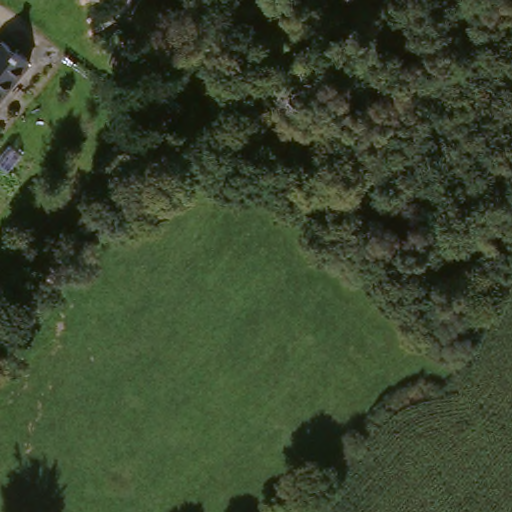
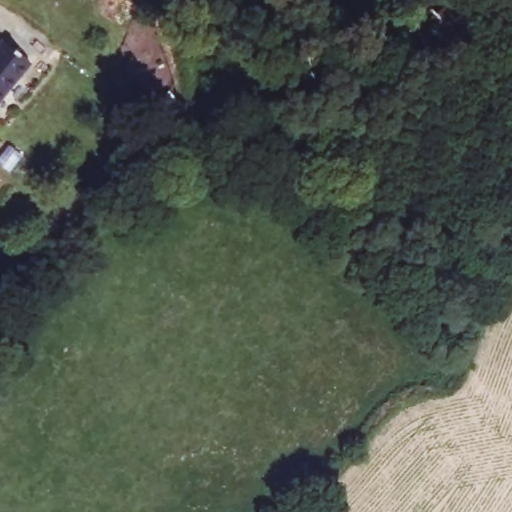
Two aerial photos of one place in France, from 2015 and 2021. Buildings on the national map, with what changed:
unchanged [(0,100),(0,46),(26,67),(0,100)]

